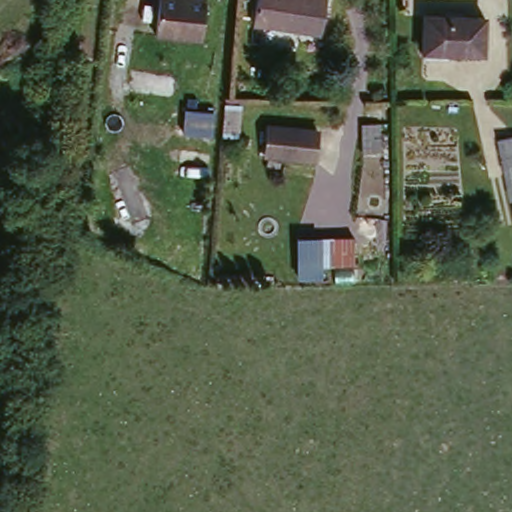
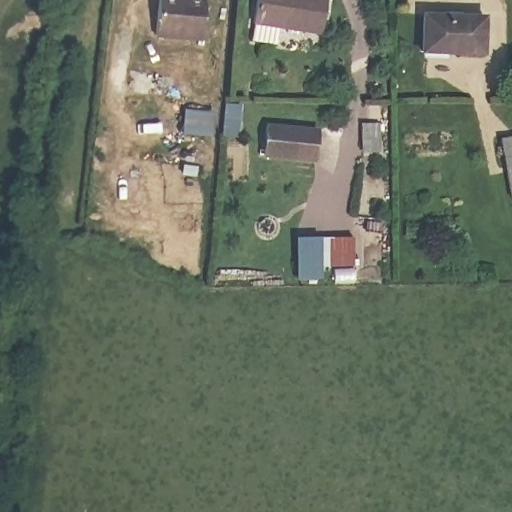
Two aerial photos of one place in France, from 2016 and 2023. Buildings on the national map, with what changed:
unchanged [(154,31),(158,0),(213,0),(212,13),(203,12),(201,38),(154,31)]
unchanged [(317,40),(250,20),(257,0),(331,0),(317,40)]
unchanged [(423,14),(483,16),(480,55),(420,51),(423,14)]
unchanged [(214,109),(205,179),(178,176),(185,105),(214,109)]
unchanged [(323,127),(320,159),(266,151),(266,122),(323,127)]
unchanged [(512,135),(512,187),(499,139),(512,135)]
unchanged [(354,282),(317,284),(316,266),(307,262),(306,234),(354,235),(354,282)]

